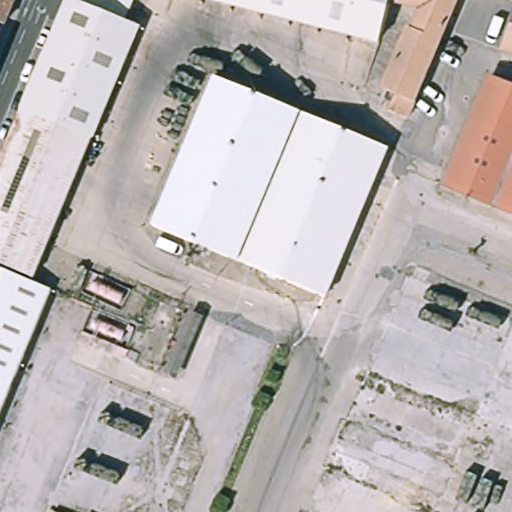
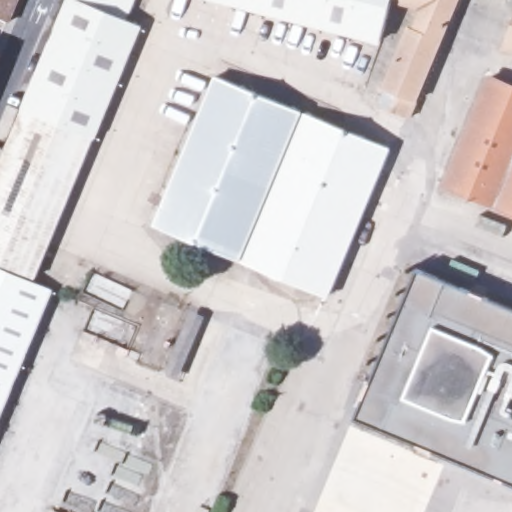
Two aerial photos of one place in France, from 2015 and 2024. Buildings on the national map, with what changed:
unchanged [(0,14),(0,0),(11,0),(5,16),(0,14)]
unchanged [(121,21),(136,28),(32,281),(55,290),(0,422),(0,157),(67,0),(130,0),(121,21)]
unchanged [(373,45),(197,0),(386,0),(384,5),(373,45)]
unchanged [(407,118),(375,106),(413,12),(384,5),(386,0),(458,0),(407,118)]
unchanged [(512,29),(512,55),(501,53),(512,29)]
unchanged [(383,147),(321,296),(145,223),(207,74),(383,147)]
unchanged [(487,77),(512,87),(512,218),(441,189),(487,77)]
new [(417,271),(512,310),(512,487),(353,421),(417,271)]
unchanged [(124,311),(85,294),(94,273),(132,290),(124,311)]
unchanged [(86,333),(96,312),(137,329),(128,351),(86,333)]
unchanged [(170,375),(193,315),(207,320),(182,381),(170,375)]

